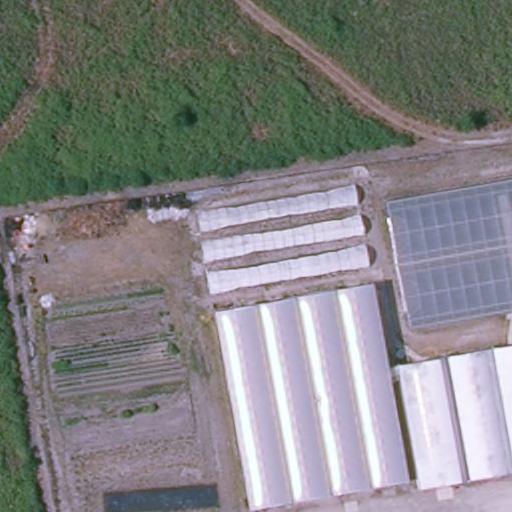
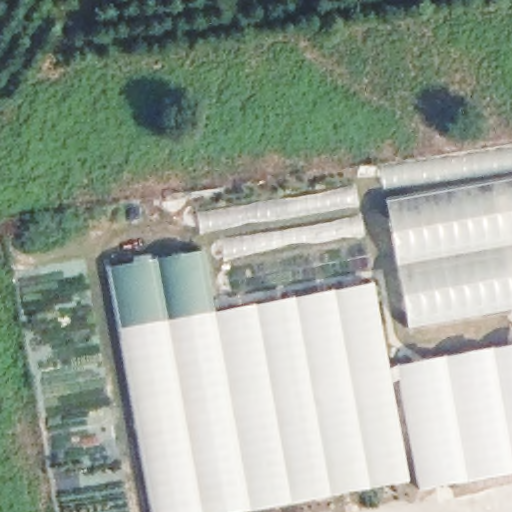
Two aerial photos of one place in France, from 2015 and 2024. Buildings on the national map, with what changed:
unchanged [(386,202),(512,180),(512,311),(409,329),(386,202)]
unchanged [(359,203),(199,233),(196,214),(356,184),(359,203)]
unchanged [(364,232),(204,262),(201,244),(361,214),(364,232)]
unchanged [(370,265),(210,294),(206,274),(365,244),(370,265)]
new [(248,512),(154,512),(110,269),(202,251),(204,262),(206,274),(210,294),(215,312),(248,512)]
unchanged [(512,345),(512,471),(420,488),(418,477),(248,512),(215,312),(373,284),(389,367),(512,345)]

